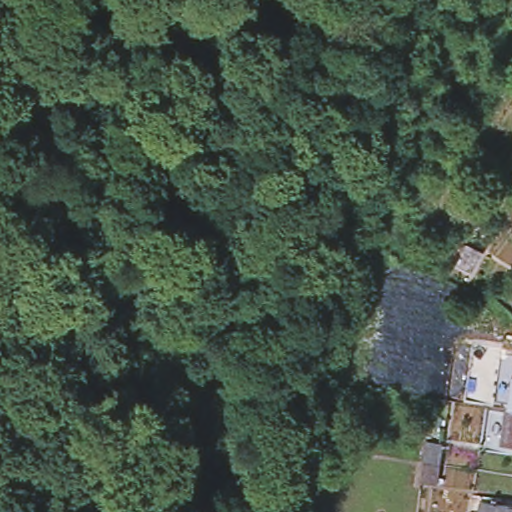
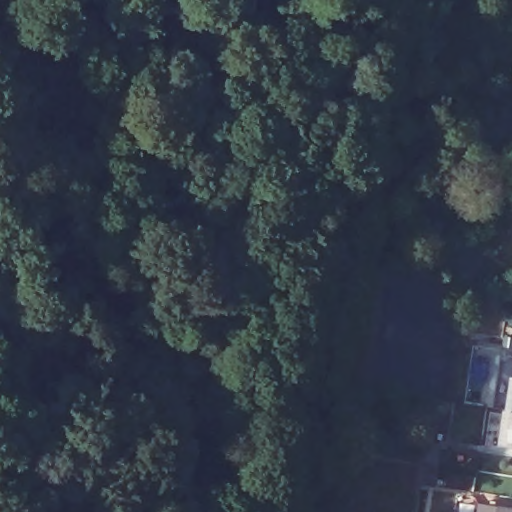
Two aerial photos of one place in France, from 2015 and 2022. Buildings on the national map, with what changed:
unchanged [(461,351),(440,348),(442,330),(465,320),(461,351)]
unchanged [(429,436),(434,400),(439,357),(454,359),(451,402),(445,438),(429,436)]
unchanged [(501,439),(505,405),(509,372),(512,372),(512,440),(501,439)]
unchanged [(423,484),(425,464),(427,450),(428,444),(444,445),(444,452),(441,466),(439,485),(423,484)]
unchanged [(512,503),(512,512),(474,512),(476,499),(512,503)]

